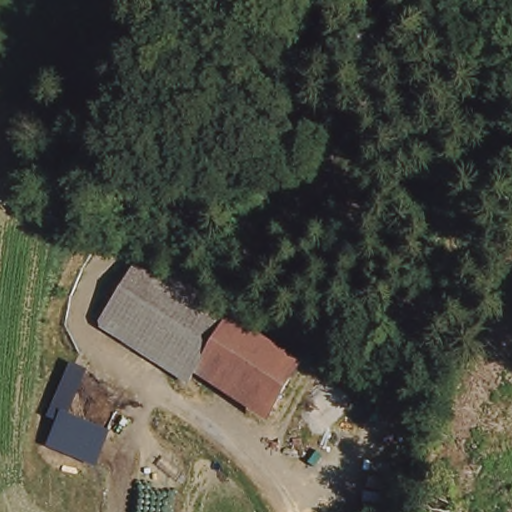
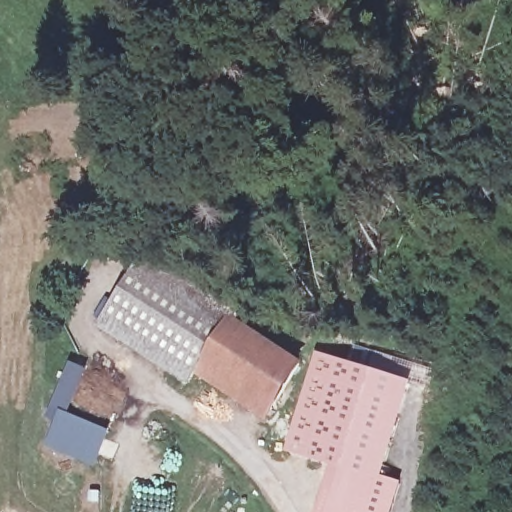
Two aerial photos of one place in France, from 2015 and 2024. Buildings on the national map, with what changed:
unchanged [(188,377),(101,327),(139,258),(159,270),(129,320),(197,360),(188,377)]
unchanged [(227,309),(222,317),(197,360),(129,320),(159,270),(227,309)]
unchanged [(291,357),(266,400),(197,360),(222,317),(291,357)]
new [(414,380),(382,483),(375,480),(366,512),(341,512),(330,508),(342,469),(285,450),(315,350),(414,380)]
unchanged [(97,467),(46,446),(57,416),(47,411),(75,365),(90,372),(70,412),(112,430),(97,467)]
new [(342,469),(330,508),(341,512),(318,512),(331,465),(342,469)]
new [(375,480),(382,483),(385,476),(404,483),(395,512),(366,512),(375,480)]

